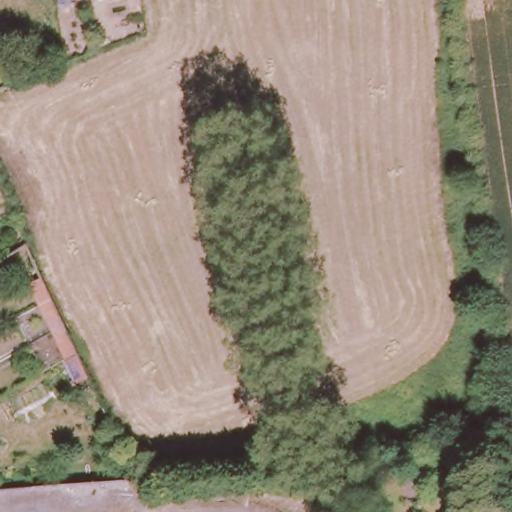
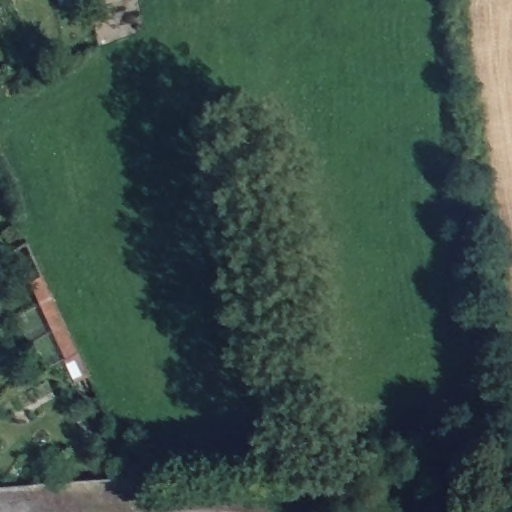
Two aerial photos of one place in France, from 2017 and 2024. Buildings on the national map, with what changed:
unchanged [(64,364),(53,337),(40,310),(53,302),(66,330),(79,356),(97,395),(81,402),(64,364)]

